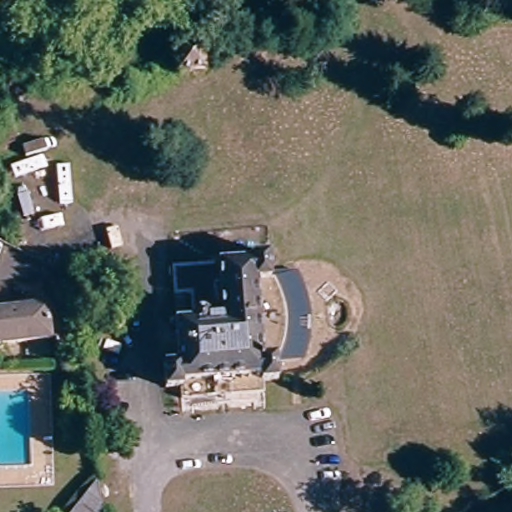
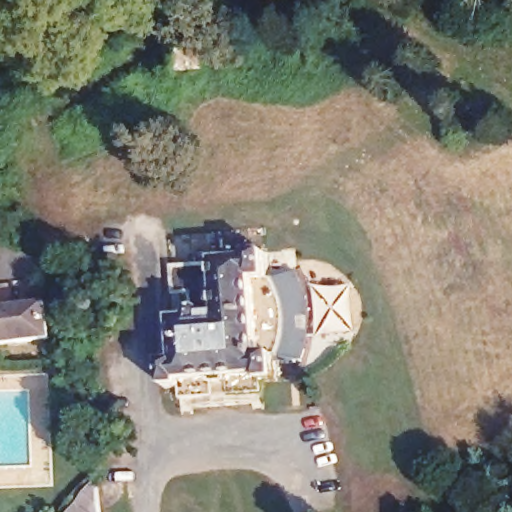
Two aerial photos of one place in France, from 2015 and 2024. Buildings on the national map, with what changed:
unchanged [(212,70),(190,71),(188,46),(210,30),(212,70)]
unchanged [(269,350),(282,350),(284,375),(270,376),(270,371),(237,373),(238,381),(222,382),(221,376),(188,378),(189,385),(172,386),(170,360),(187,360),(185,319),(199,318),(197,288),(182,290),(180,265),(261,260),(260,250),(274,250),(276,276),(264,276),(269,350)]
unchanged [(57,336),(0,343),(0,306),(53,300),(57,336)]
unchanged [(72,512),(93,485),(96,512),(72,512)]

